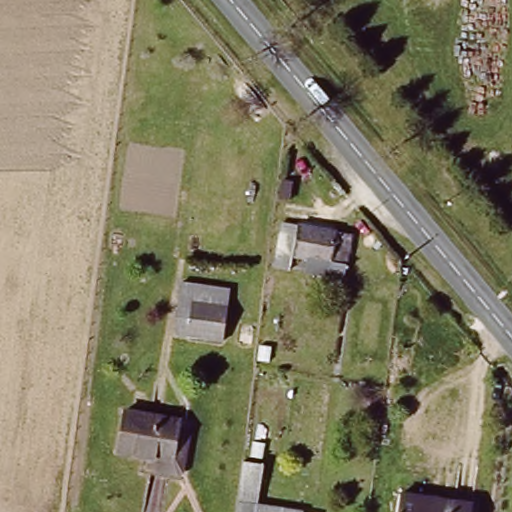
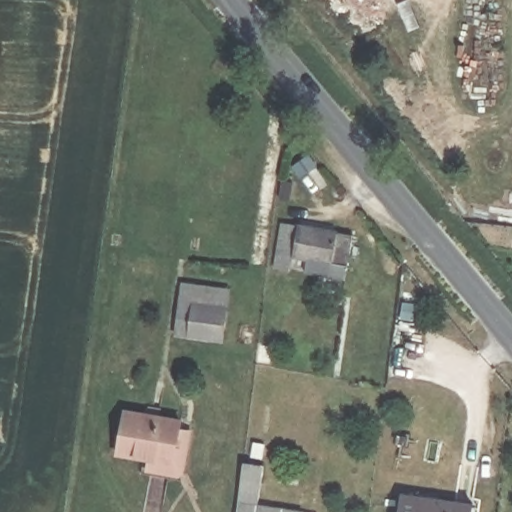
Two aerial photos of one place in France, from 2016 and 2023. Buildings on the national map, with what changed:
unchanged [(281,220),(356,231),(350,278),(273,264),(281,220)]
unchanged [(188,333),(175,331),(180,282),(230,288),(225,307),(221,338),(188,333)]
unchanged [(124,409),(175,417),(175,424),(185,426),(178,464),(165,471),(143,468),(144,460),(116,455),(124,409)]
unchanged [(265,463),(260,506),(302,512),(238,512),(245,460),(265,463)]
unchanged [(394,512),(397,492),(443,499),(442,512),(394,512)]
unchanged [(442,512),(443,499),(472,503),(471,512),(442,512)]

